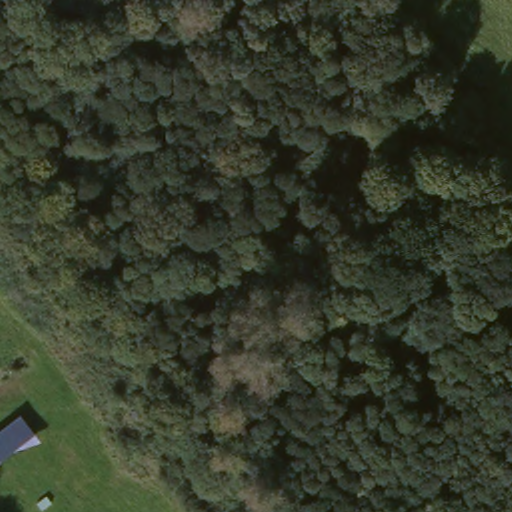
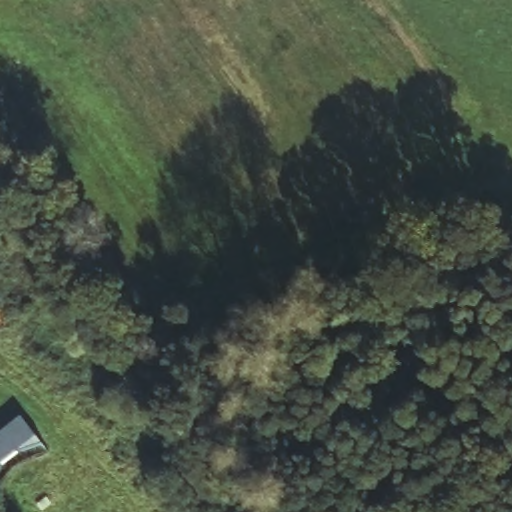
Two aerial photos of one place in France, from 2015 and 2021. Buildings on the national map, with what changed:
unchanged [(0,459),(0,431),(21,415),(36,434),(0,459)]

